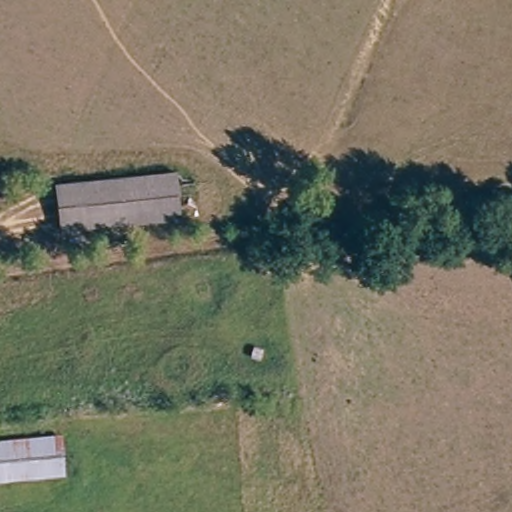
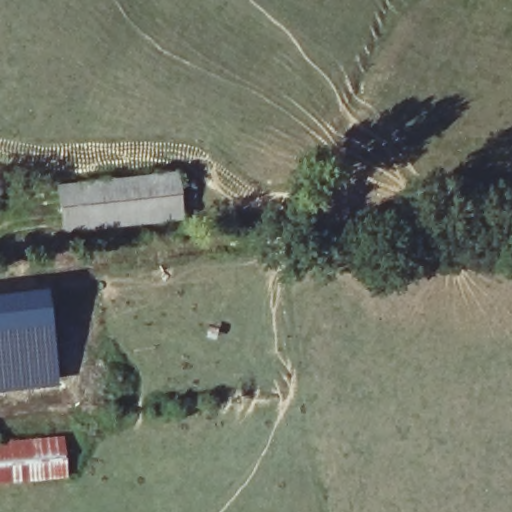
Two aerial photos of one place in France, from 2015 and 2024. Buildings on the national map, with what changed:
unchanged [(183,218),(62,232),(57,184),(191,168),(196,216),(183,218)]
new [(60,384),(0,392),(0,291),(47,285),(60,384)]
unchanged [(0,440),(65,433),(68,475),(0,481),(0,440)]

